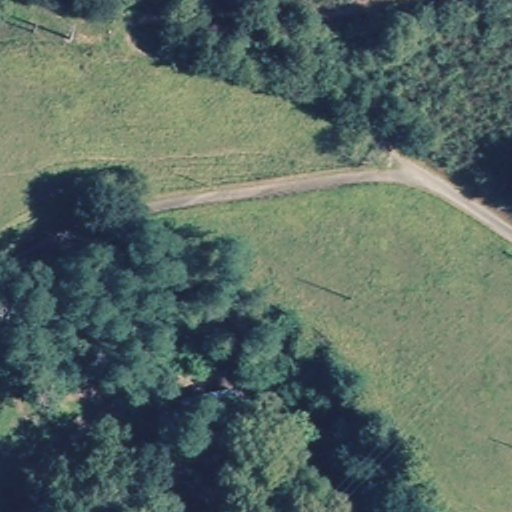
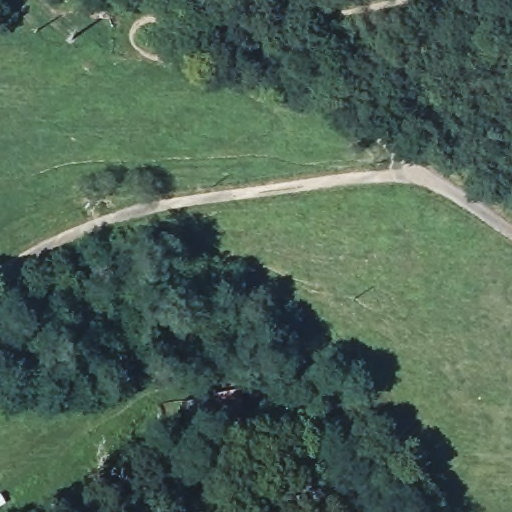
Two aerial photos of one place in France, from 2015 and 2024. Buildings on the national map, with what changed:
unchanged [(187,425),(180,399),(213,394),(219,420),(187,425)]

